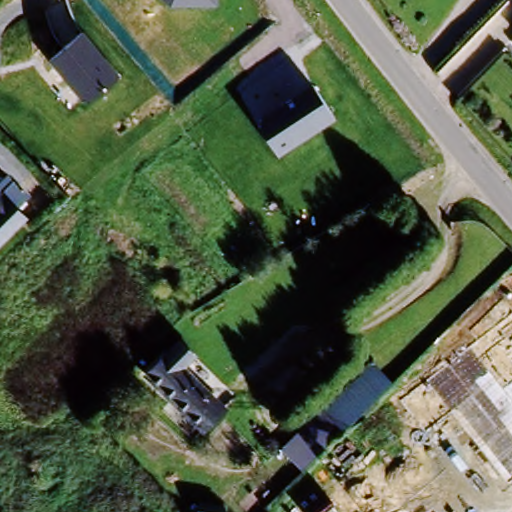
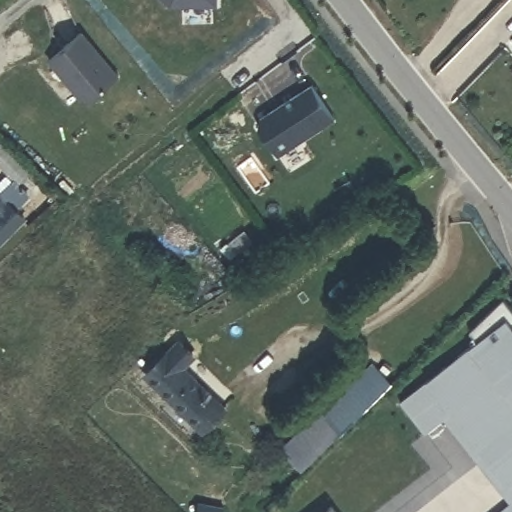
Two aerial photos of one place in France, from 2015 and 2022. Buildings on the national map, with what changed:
unchanged [(166,0),(219,0),(219,5),(171,5),(166,0)]
unchanged [(51,58),(84,31),(121,77),(87,101),(51,58)]
unchanged [(251,119),(308,81),(333,119),(278,156),(251,119)]
unchanged [(30,178),(21,189),(0,171),(0,168),(7,159),(30,178)]
unchanged [(6,183),(28,202),(16,217),(24,224),(0,251),(0,190),(6,183)]
new [(512,322),(512,512),(499,512),(510,503),(444,419),(425,434),(399,402),(426,380),(476,340),(468,331),(503,297),(512,308),(512,322)]
unchanged [(204,434),(187,418),(148,379),(182,345),(193,357),(181,368),(208,396),(225,412),(204,434)]
unchanged [(280,453),(371,363),(392,387),(300,475),(280,453)]
new [(331,506),(336,512),(324,512),(331,506)]

